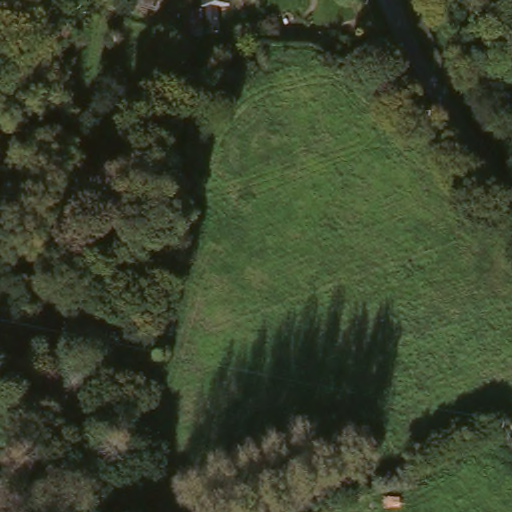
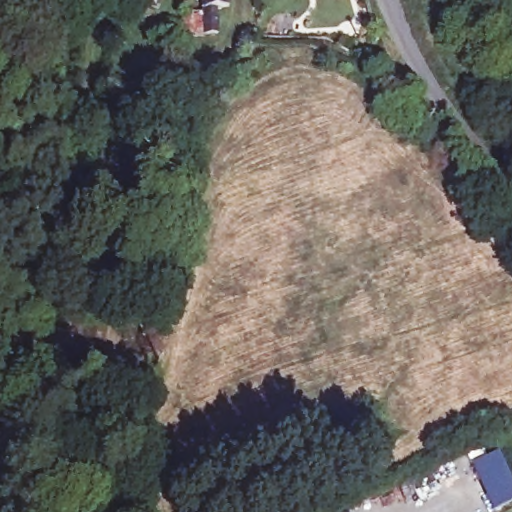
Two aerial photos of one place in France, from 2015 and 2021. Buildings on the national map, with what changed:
unchanged [(137,5),(138,0),(165,0),(162,13),(137,5)]
unchanged [(224,11),(224,36),(209,39),(204,6),(186,9),(186,0),(234,0),(234,11),(224,11)]
new [(496,451),(512,483),(512,499),(490,508),(469,465),(496,451)]

